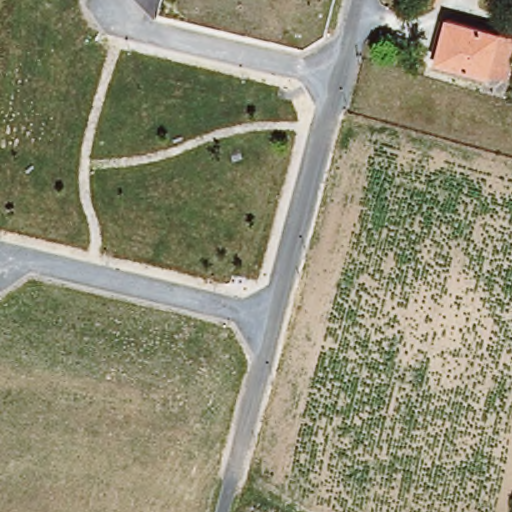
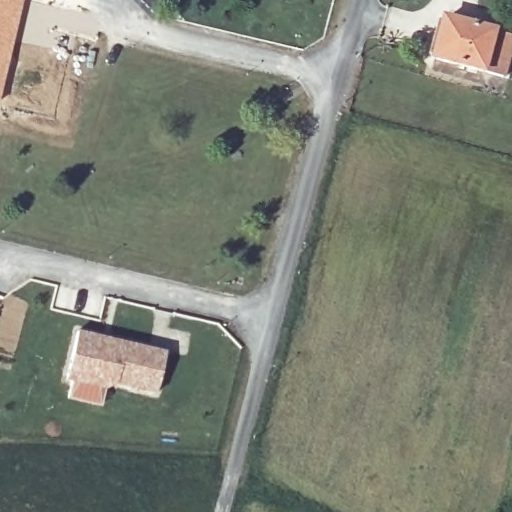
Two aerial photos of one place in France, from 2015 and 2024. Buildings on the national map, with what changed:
new [(0,0),(22,0),(0,93),(0,0)]
unchanged [(435,59),(446,20),(496,34),(512,38),(512,48),(503,79),(485,73),(435,59)]
new [(75,335),(161,357),(152,396),(112,386),(100,393),(62,384),(75,335)]

